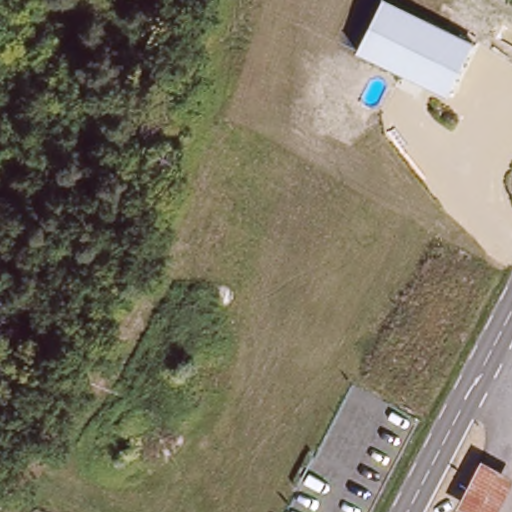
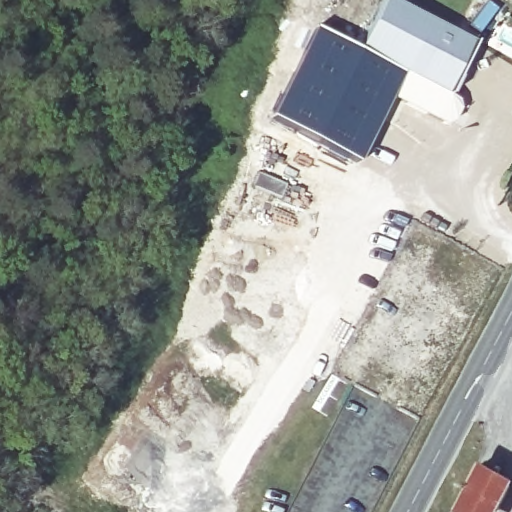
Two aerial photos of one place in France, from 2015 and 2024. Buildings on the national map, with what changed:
unchanged [(448,97),(357,52),(383,0),(392,0),(475,40),(448,97)]
new [(267,119),(311,31),(357,52),(448,97),(450,96),(457,100),(459,109),(453,122),(445,124),(389,98),(356,164),(267,119)]
unchanged [(458,507),(482,462),(512,479),(512,486),(498,512),(467,512),(458,507)]

